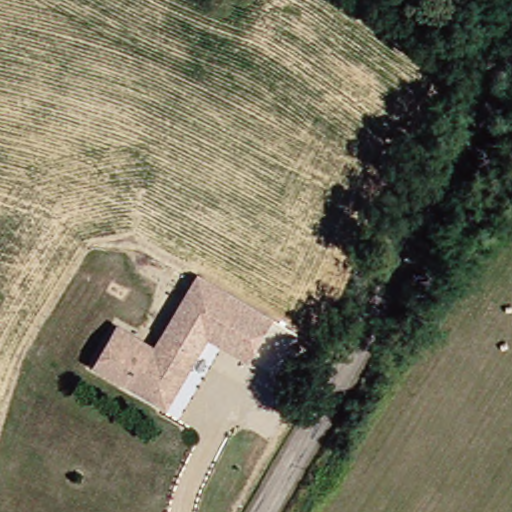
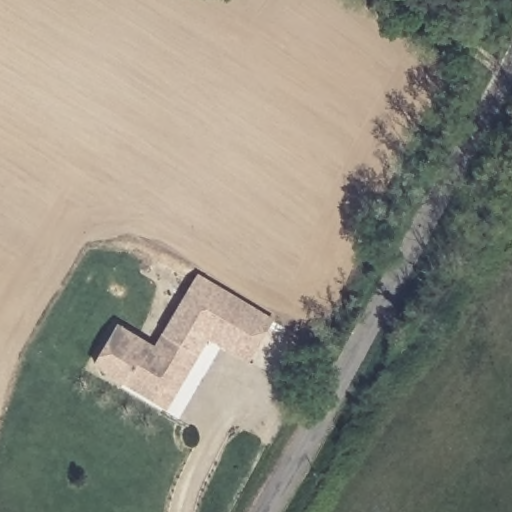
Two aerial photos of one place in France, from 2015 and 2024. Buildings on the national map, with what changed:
unchanged [(126,382),(97,363),(119,323),(154,344),(196,273),(270,317),(246,357),(209,335),(188,370),(166,407),(126,382)]

